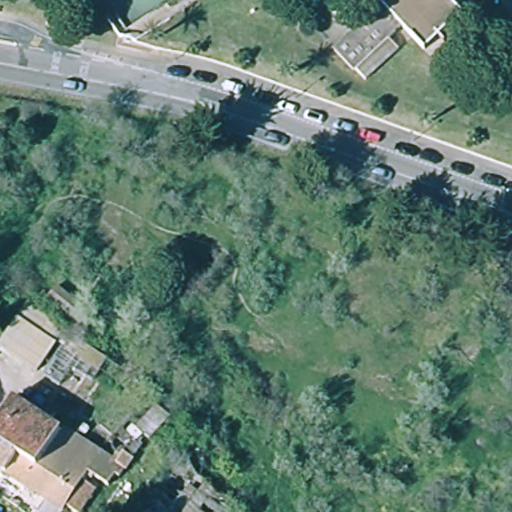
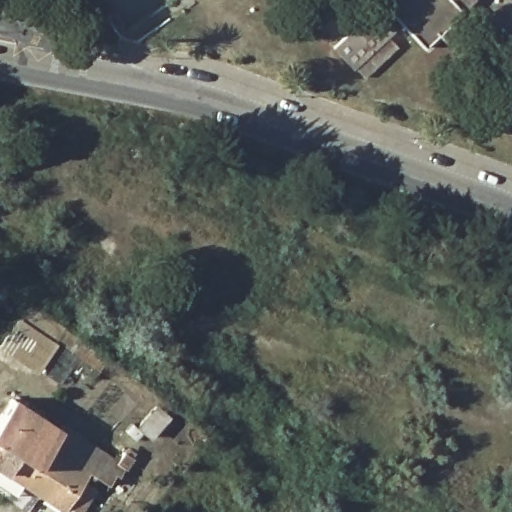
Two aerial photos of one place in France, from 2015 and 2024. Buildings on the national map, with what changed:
unchanged [(385,0),(452,0),(467,16),(430,50),(413,29),(395,7),(385,0)]
unchanged [(395,7),(413,29),(366,74),(346,53),(395,7)]
unchanged [(93,381),(82,375),(88,365),(58,343),(37,374),(0,349),(0,343),(29,302),(67,327),(65,331),(108,358),(93,381)]
unchanged [(84,512),(75,506),(72,512),(64,512),(0,470),(0,430),(19,403),(65,435),(68,432),(108,457),(88,487),(100,495),(90,512),(84,512)]

